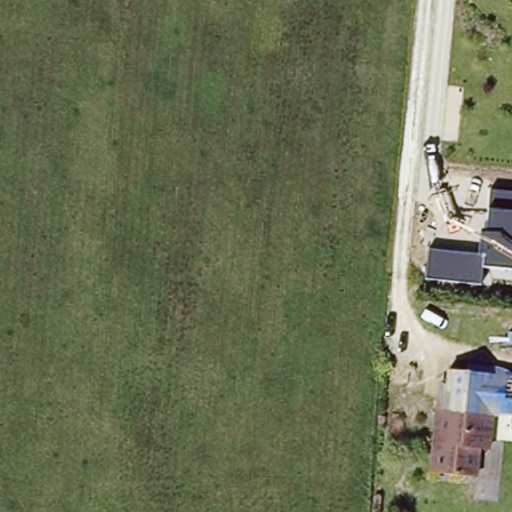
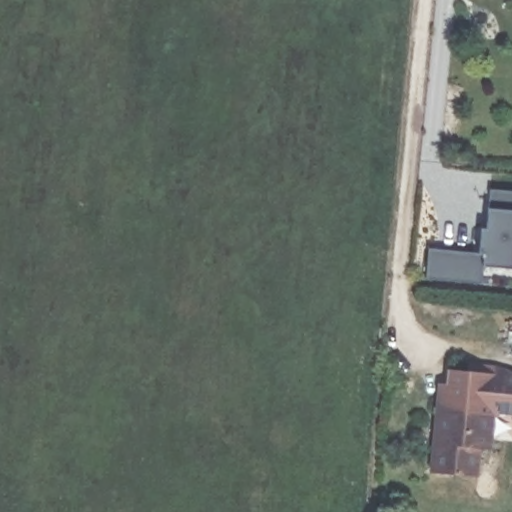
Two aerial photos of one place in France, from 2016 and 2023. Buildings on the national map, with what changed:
unchanged [(477,256),(479,231),(488,232),(490,209),(490,191),(512,193),(512,268),(484,265),(482,283),(426,278),(429,250),(477,256)]
unchanged [(497,368),(512,374),(512,415),(494,412),(497,375),(497,368)]
unchanged [(440,407),(441,382),(447,383),(448,370),(497,375),(494,412),(440,407)]
unchanged [(494,412),(491,446),(481,445),(478,473),(434,468),(440,407),(494,412)]

